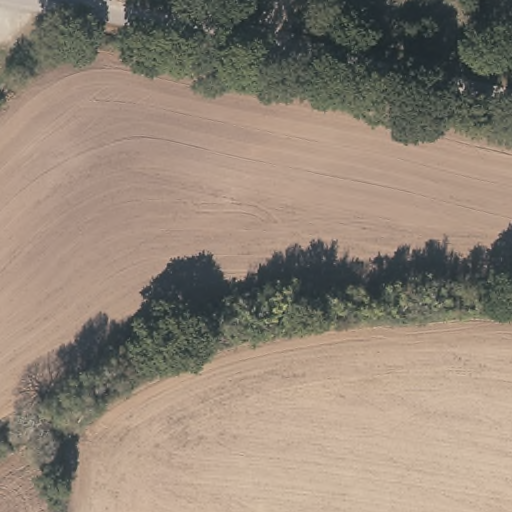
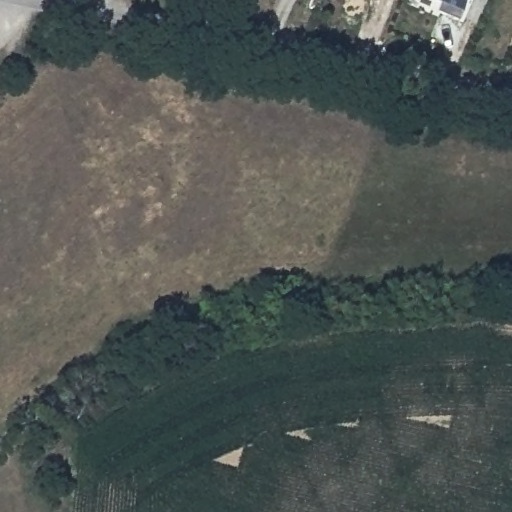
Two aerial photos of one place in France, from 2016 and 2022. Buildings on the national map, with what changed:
new [(462,21),(440,11),(446,3),(439,0),(470,0),(465,12),(462,21)]

